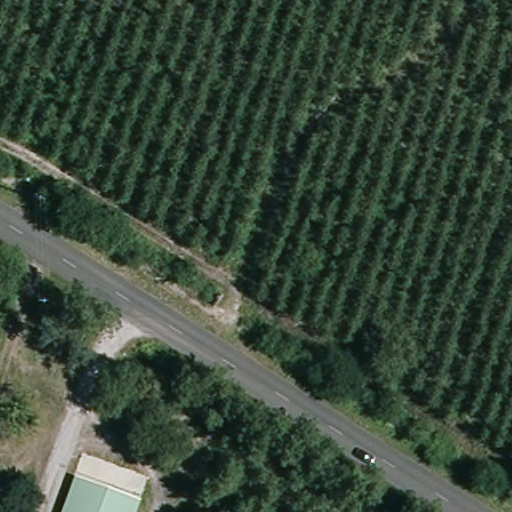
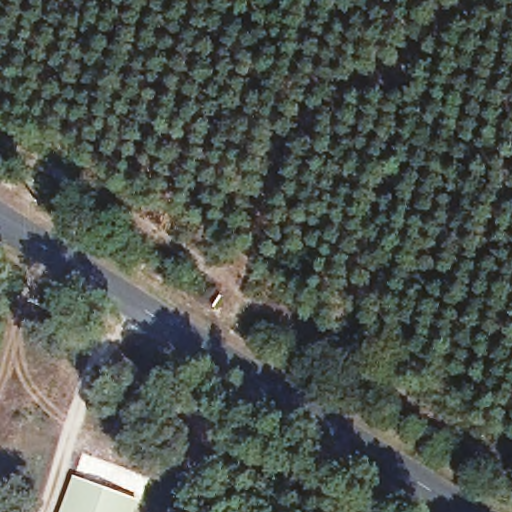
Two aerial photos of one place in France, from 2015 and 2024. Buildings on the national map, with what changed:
unchanged [(136,512),(63,512),(77,473),(141,499),(136,512)]

